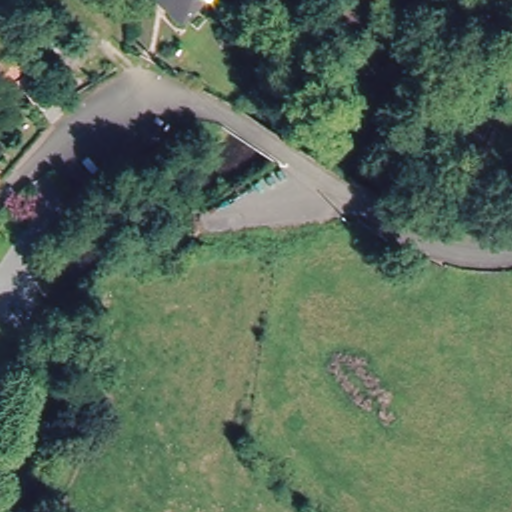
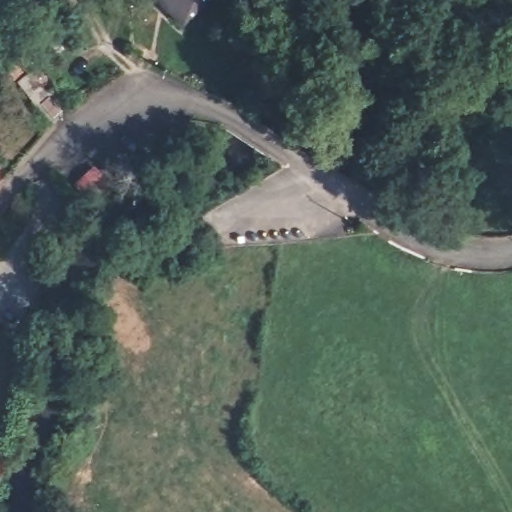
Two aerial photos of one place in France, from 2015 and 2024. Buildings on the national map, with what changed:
unchanged [(174,28),(137,0),(197,0),(174,28)]
unchanged [(61,48),(40,26),(51,15),(72,37),(61,48)]
unchanged [(48,104),(29,86),(40,76),(56,93),(48,104)]

